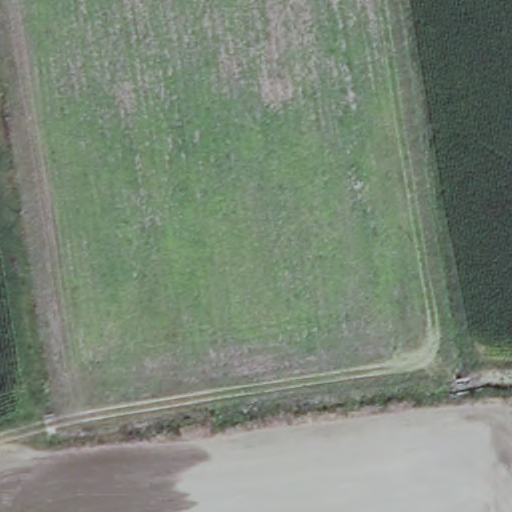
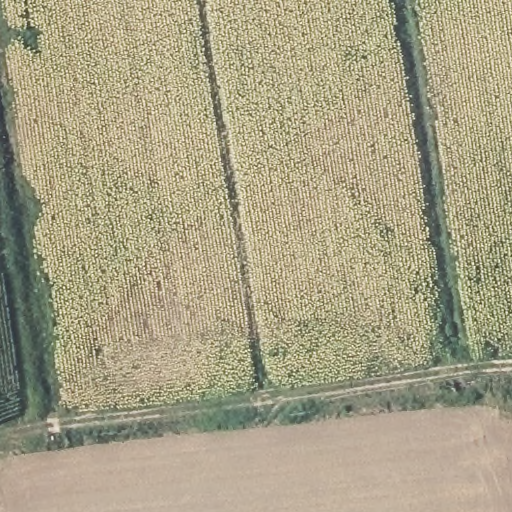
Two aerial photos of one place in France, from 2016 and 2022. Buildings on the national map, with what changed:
[]

